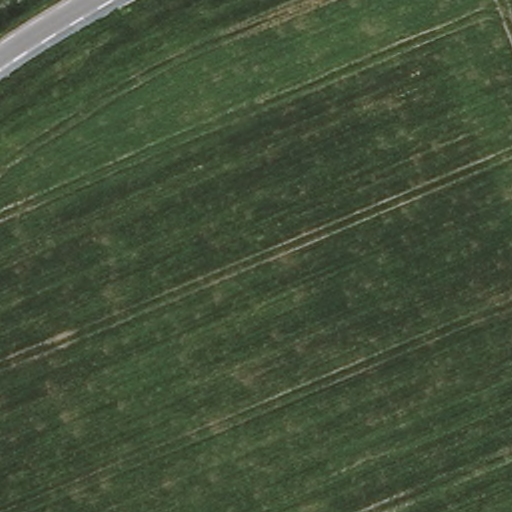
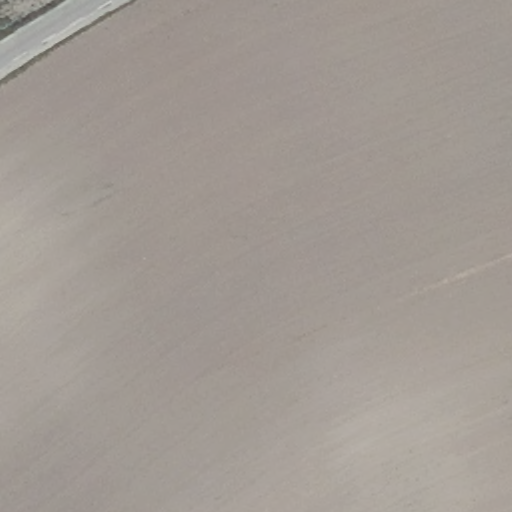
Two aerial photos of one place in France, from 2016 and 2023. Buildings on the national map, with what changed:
[]

